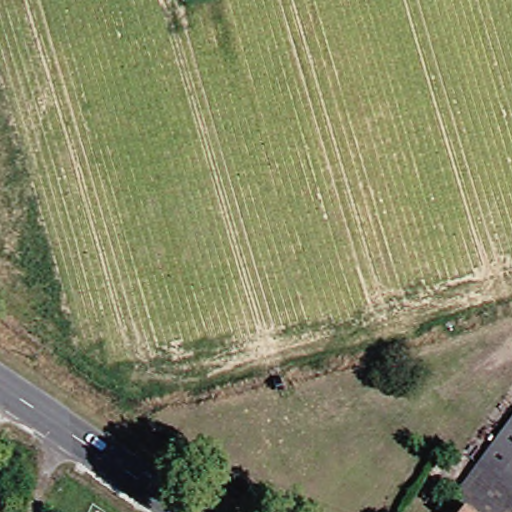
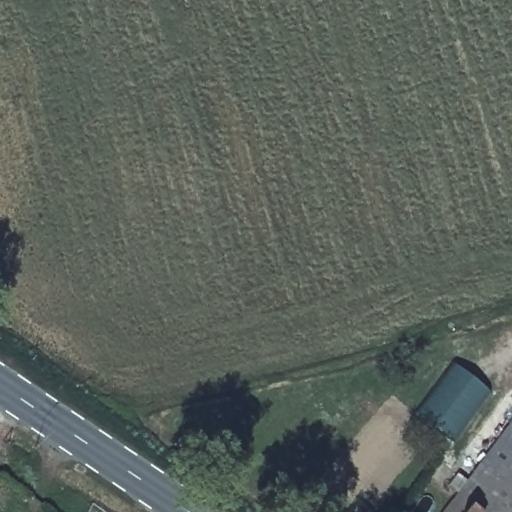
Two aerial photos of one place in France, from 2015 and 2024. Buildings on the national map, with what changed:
new [(450,437),(418,413),(455,367),(485,390),(450,437)]
unchanged [(512,430),(512,512),(450,512),(512,430)]

